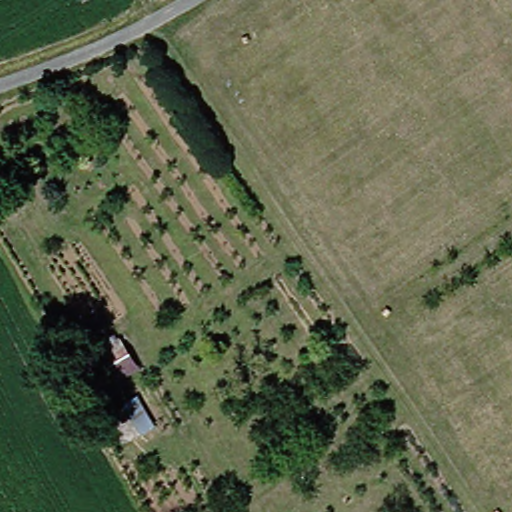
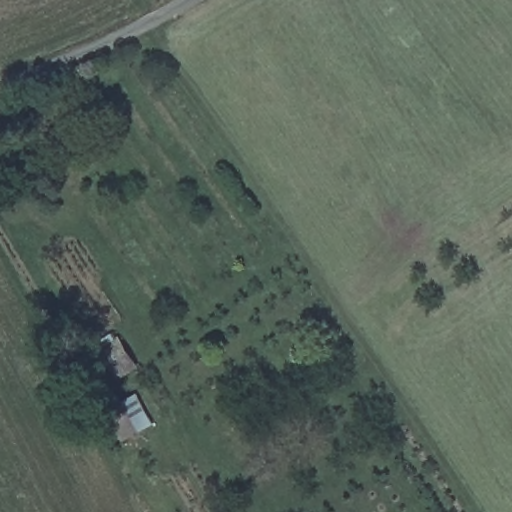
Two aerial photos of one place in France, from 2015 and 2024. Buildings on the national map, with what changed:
unchanged [(127,377),(108,349),(125,339),(145,365),(127,377)]

